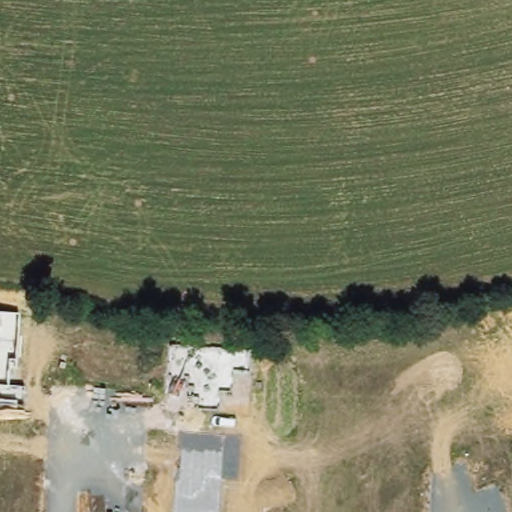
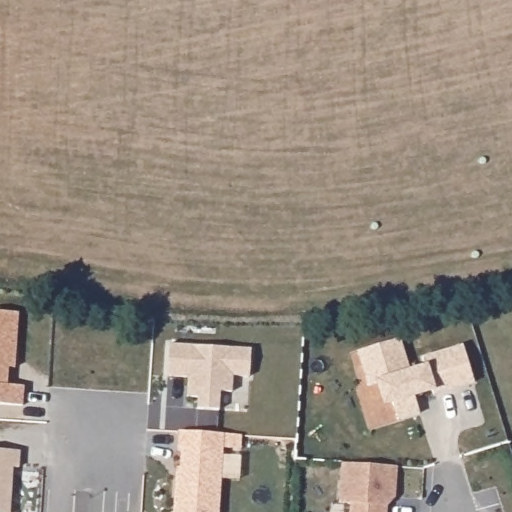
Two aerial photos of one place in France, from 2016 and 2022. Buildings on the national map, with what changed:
unchanged [(16,369),(8,367),(8,385),(25,386),(24,405),(0,402),(0,313),(19,314),(16,369)]
new [(401,339),(411,373),(426,368),(423,358),(464,346),(475,384),(434,396),(433,391),(415,397),(420,415),(399,421),(393,403),(385,406),(378,384),(369,387),(358,352),(401,339)]
unchanged [(170,345),(250,350),(249,373),(234,372),(234,391),(222,390),(219,408),(199,406),(199,397),(192,397),(192,385),(188,385),(188,380),(168,381),(170,345)]
new [(177,469),(180,469),(182,451),(178,451),(179,433),(224,435),(219,512),(174,512),(176,480),(177,469)]
new [(19,469),(13,469),(10,512),(0,512),(0,451),(20,452),(19,469)]
new [(387,512),(351,512),(352,505),(340,504),(343,464),(398,468),(396,498),(388,507),(387,512)]

